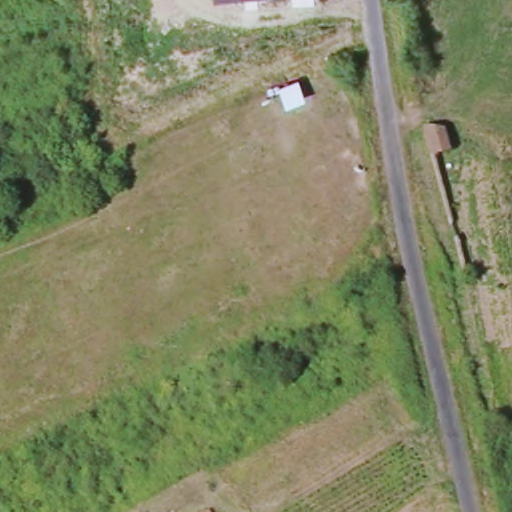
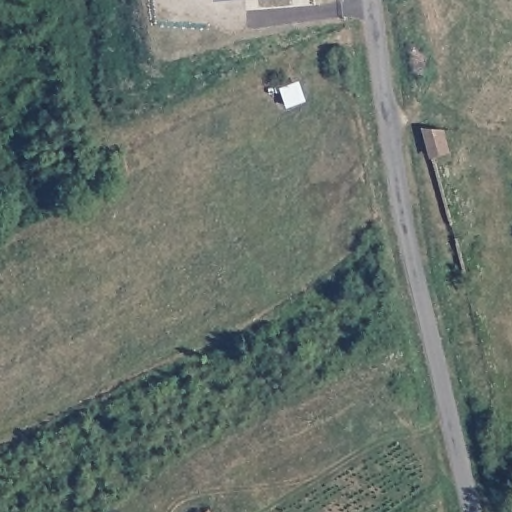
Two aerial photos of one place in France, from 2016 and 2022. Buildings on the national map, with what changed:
unchanged [(213,5),(213,0),(260,0),(213,5)]
unchanged [(429,130),(447,129),(450,147),(434,150),(429,130)]
unchanged [(210,512),(209,512),(210,511),(210,512)]

